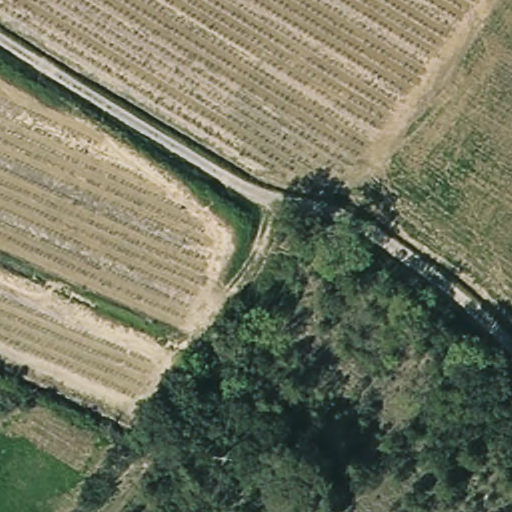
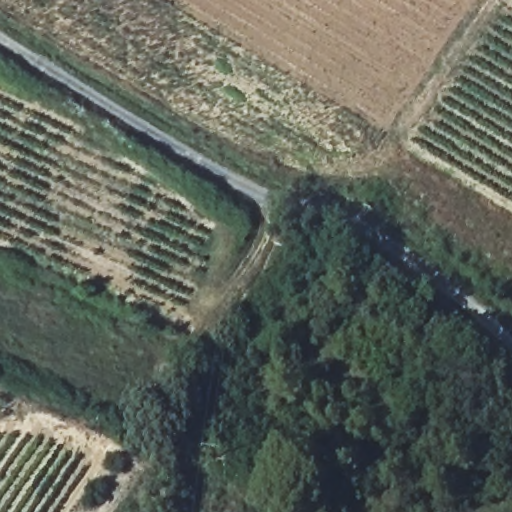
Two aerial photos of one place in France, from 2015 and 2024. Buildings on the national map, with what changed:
unchanged [(305,234),(291,255),(279,245),(288,227),(305,234)]

